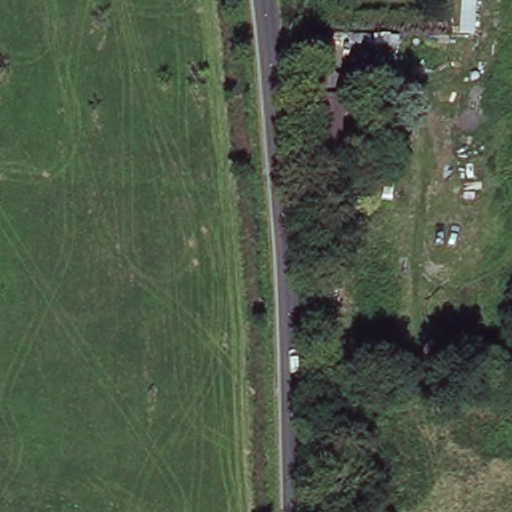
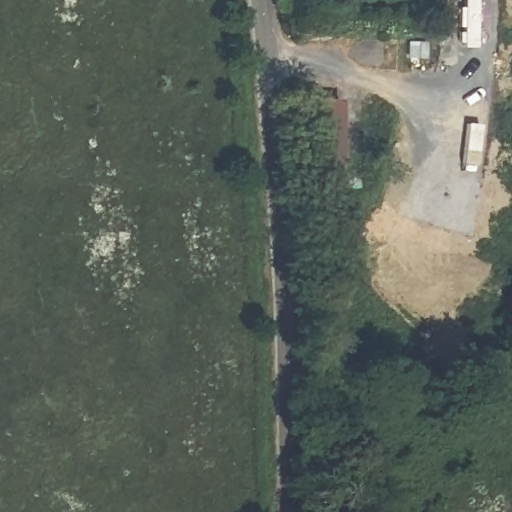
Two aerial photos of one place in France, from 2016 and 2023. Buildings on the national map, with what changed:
unchanged [(308,161),(308,148),(308,97),(339,97),(338,148),(338,161),(308,161)]

